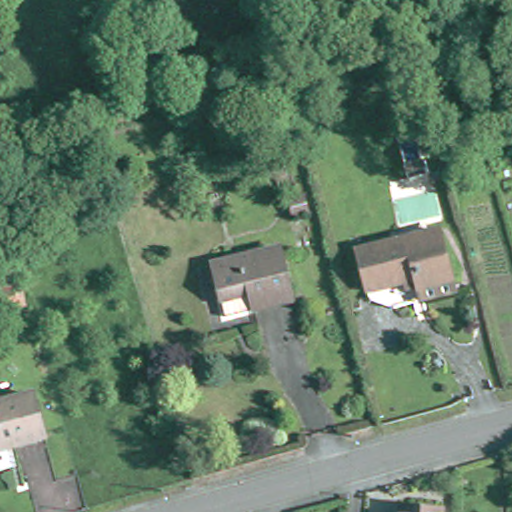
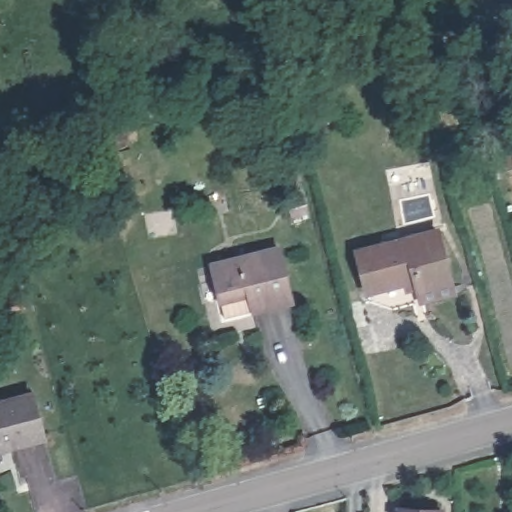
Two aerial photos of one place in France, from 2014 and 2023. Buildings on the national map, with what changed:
unchanged [(438,229),(454,290),(394,307),(369,299),(356,251),(438,229)]
unchanged [(211,265),(279,247),(292,300),(251,310),(246,291),(220,298),(211,265)]
unchanged [(0,287),(19,282),(25,305),(0,311),(0,287)]
unchanged [(44,437),(9,446),(9,445),(0,447),(0,402),(33,393),(44,437)]
unchanged [(447,512),(404,512),(404,503),(447,505),(447,512)]

